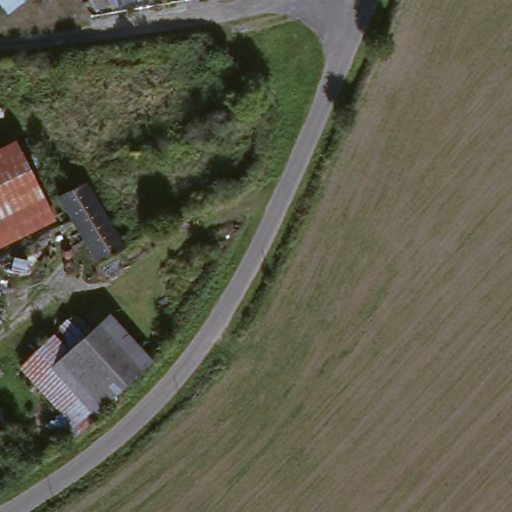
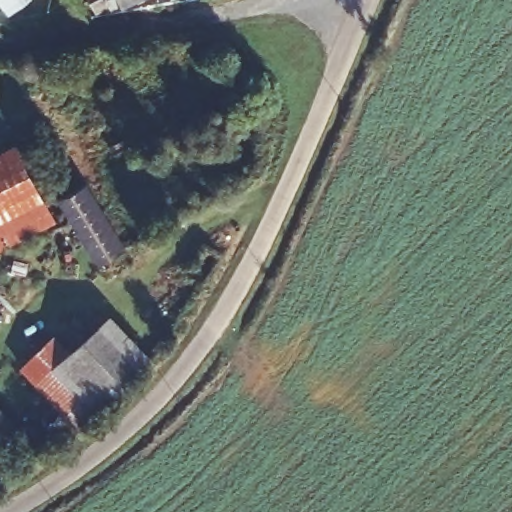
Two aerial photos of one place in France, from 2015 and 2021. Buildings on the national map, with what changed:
unchanged [(1,24),(0,23),(0,0),(27,0),(1,24)]
unchanged [(98,10),(95,0),(131,0),(98,10)]
unchanged [(59,230),(0,264),(0,150),(17,140),(59,230)]
unchanged [(60,232),(52,217),(62,210),(54,200),(56,199),(74,185),(119,245),(97,261),(72,225),(60,232)]
unchanged [(74,431),(19,371),(67,324),(81,338),(106,317),(145,359),(74,431)]
unchanged [(11,434),(0,444),(0,418),(11,434)]

